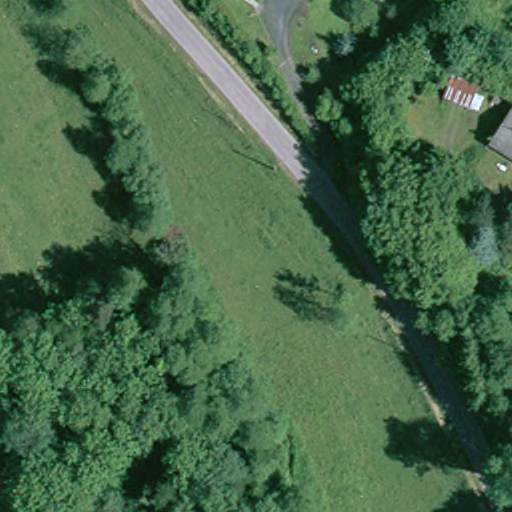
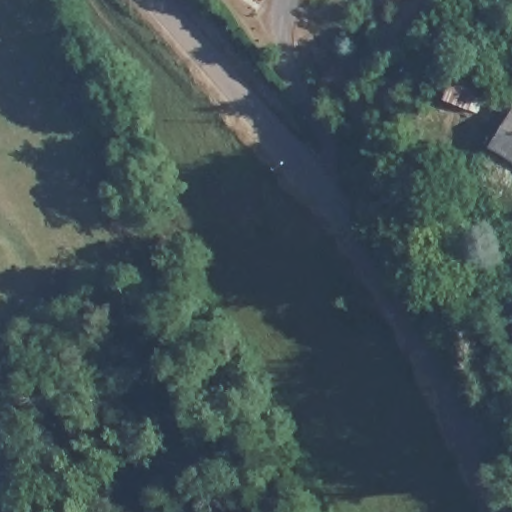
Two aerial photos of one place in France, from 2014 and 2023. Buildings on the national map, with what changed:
unchanged [(449,100),(439,96),(448,77),(449,75),(452,77),(456,79),(457,76),(461,67),(486,77),(480,90),(469,116),(446,107),(449,100)]
unchanged [(497,142),(512,119),(512,152),(497,142)]

